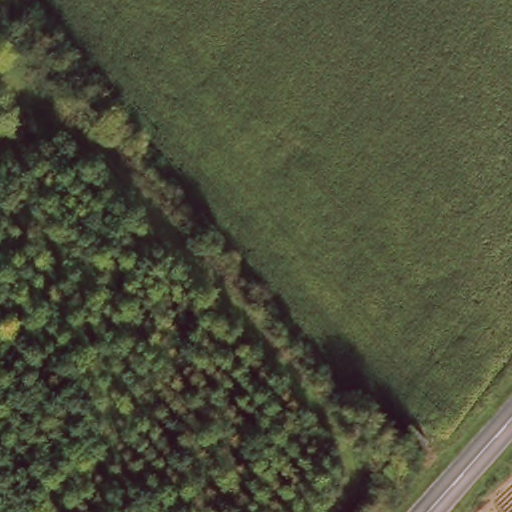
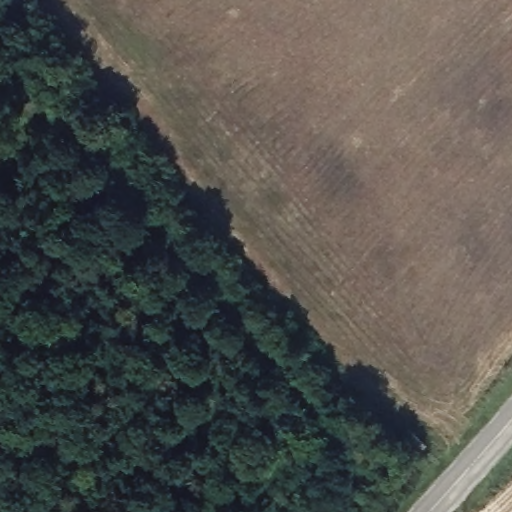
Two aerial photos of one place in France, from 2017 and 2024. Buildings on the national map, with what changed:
unchanged [(402,475),(392,459),(405,442),(420,456),(402,475)]

